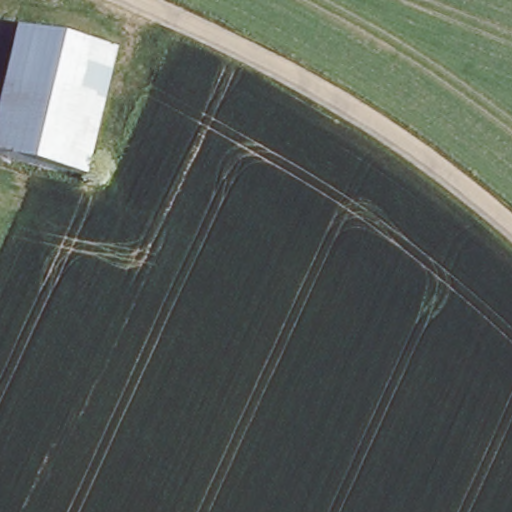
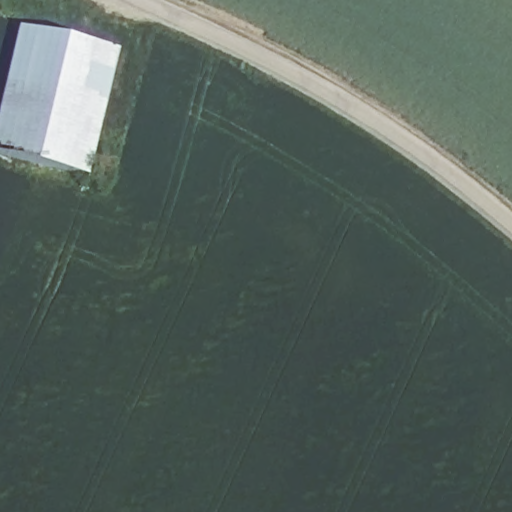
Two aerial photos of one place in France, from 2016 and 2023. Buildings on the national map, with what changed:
unchanged [(116,54),(88,178),(0,155),(0,132),(23,33),(116,54)]

